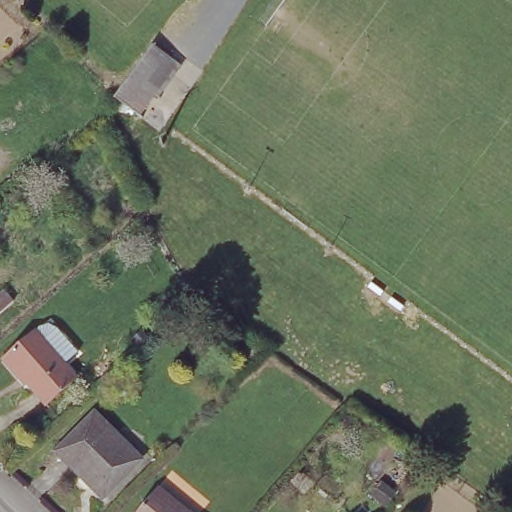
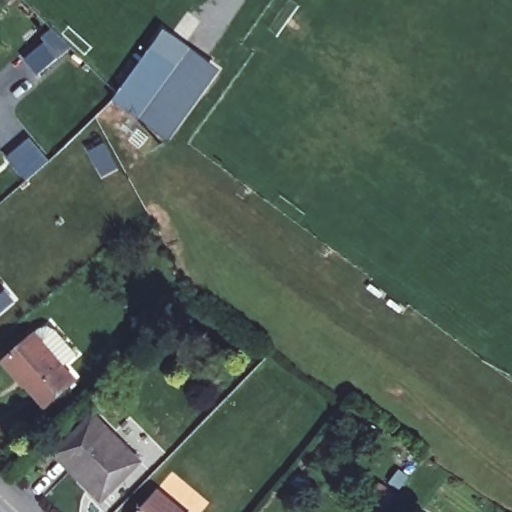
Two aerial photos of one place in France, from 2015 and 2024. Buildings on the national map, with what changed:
new [(114,99),(165,29),(218,68),(170,137),(114,99)]
demolished [(175,62),(140,107),(122,91),(153,47),(175,62)]
unchanged [(16,300),(0,313),(0,292),(5,287),(16,300)]
unchanged [(27,393),(2,365),(34,335),(44,326),(55,334),(77,358),(65,368),(77,381),(47,408),(30,389),(27,393)]
unchanged [(100,411),(147,454),(112,491),(65,448),(100,411)]
unchanged [(197,512),(143,512),(168,486),(197,512)]

